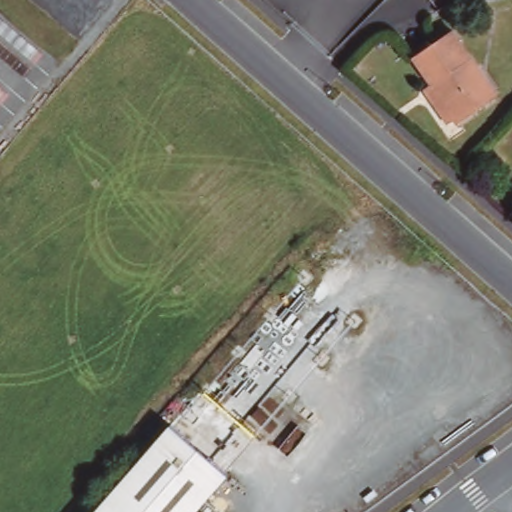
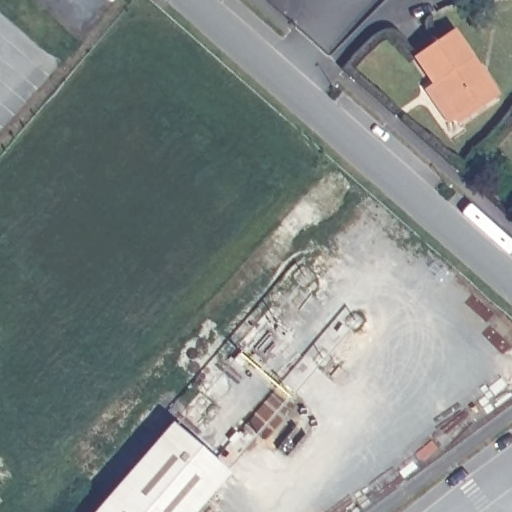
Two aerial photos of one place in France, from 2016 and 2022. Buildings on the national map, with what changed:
unchanged [(428,93),(432,87),(410,65),(442,31),(499,87),(481,106),(462,125),(428,93)]
unchanged [(175,425),(234,475),(202,512),(99,512),(175,425)]

